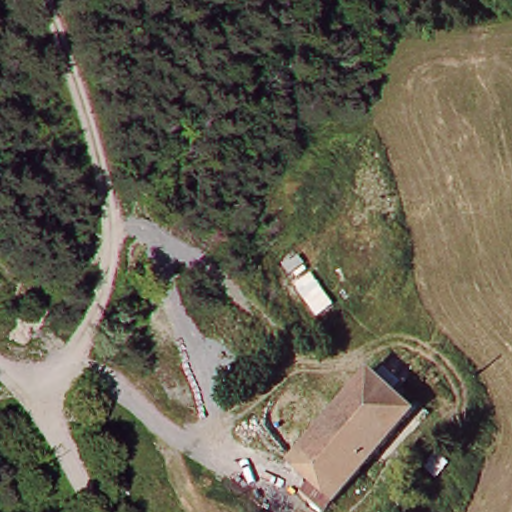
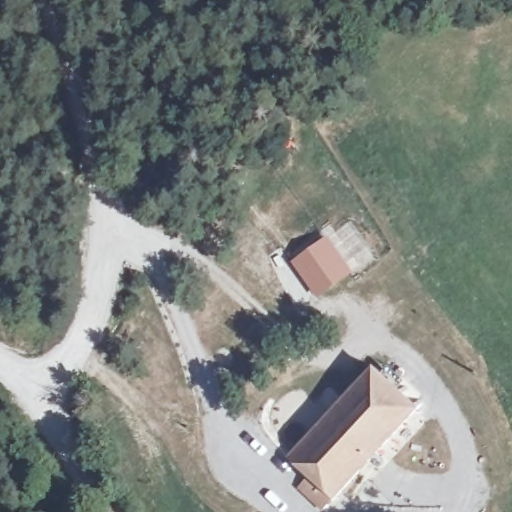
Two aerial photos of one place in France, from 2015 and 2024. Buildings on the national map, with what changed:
new [(318,300),(292,259),(329,235),(355,274),(318,300)]
unchanged [(316,474),(295,455),(380,363),(425,403),(340,496),(329,507),(305,486),(316,474)]

